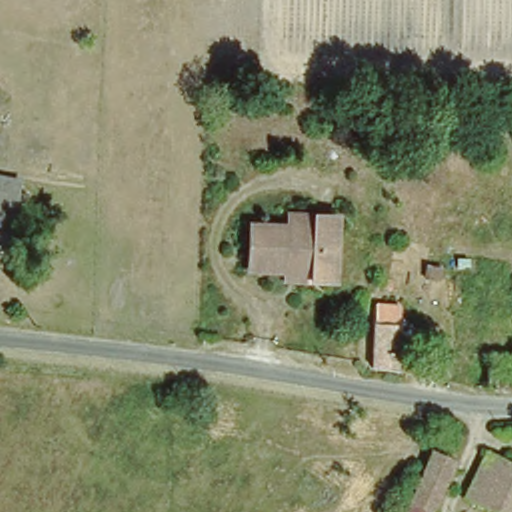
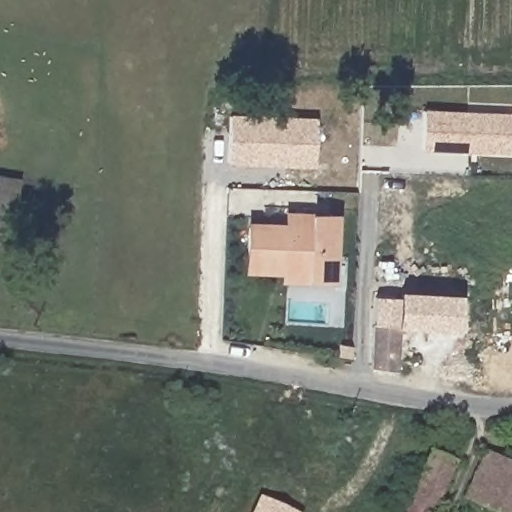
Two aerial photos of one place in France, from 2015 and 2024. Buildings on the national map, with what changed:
unchanged [(278,107),(266,107),(255,107),(255,92),(267,93),(278,94),(278,107)]
new [(420,150),(421,109),(510,113),(509,155),(420,150)]
new [(226,164),(229,113),(316,117),(314,168),(226,164)]
unchanged [(11,175),(17,176),(22,177),(11,241),(0,240),(0,173),(11,175)]
unchanged [(285,271),(261,270),(247,270),(250,225),(262,225),(287,226),(288,215),(336,217),(333,281),(308,280),(285,280),(285,271)]
new [(460,330),(397,327),(398,306),(399,290),(461,294),(460,330)]
unchanged [(373,305),(398,306),(396,369),(370,367),(373,305)]
unchanged [(457,457),(431,512),(399,512),(430,445),(457,457)]
unchanged [(512,459),(512,511),(470,489),(490,448),(512,459)]
new [(295,512),(251,512),(258,495),(295,512)]

